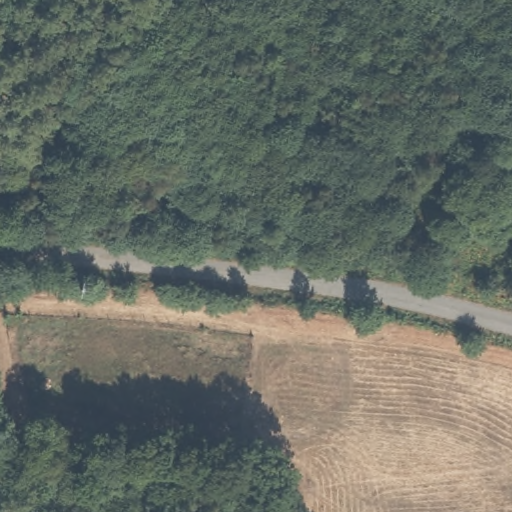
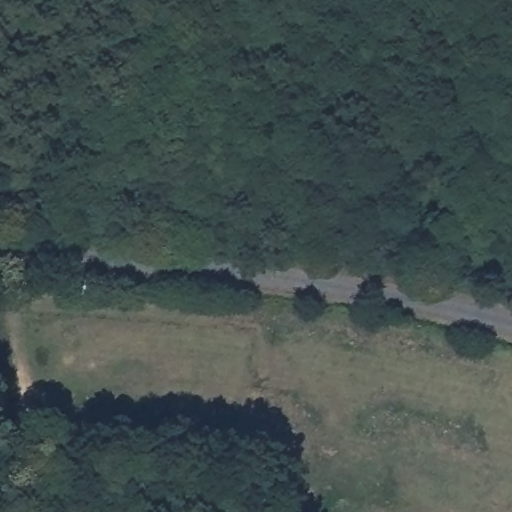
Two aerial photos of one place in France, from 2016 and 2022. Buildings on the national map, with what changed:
[]

